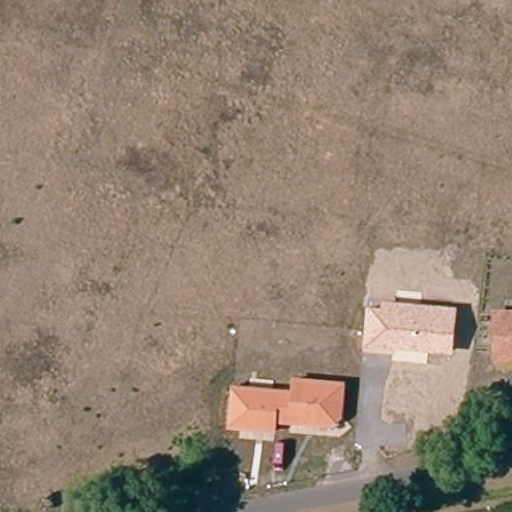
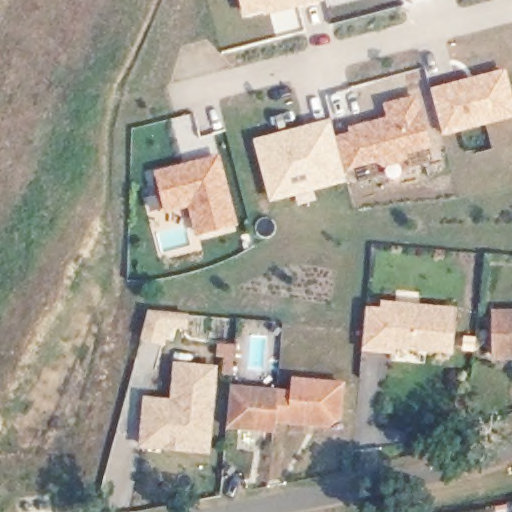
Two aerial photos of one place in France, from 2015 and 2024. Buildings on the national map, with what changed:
new [(264,11),(245,16),(242,0),(325,0),(325,1),(265,16),(264,11)]
new [(443,132),(432,91),(505,71),(512,98),(512,115),(443,132)]
new [(271,202),(254,140),(331,120),(335,138),(351,134),(349,127),(387,117),(385,104),(419,96),(432,147),(408,153),(403,162),(385,167),(377,161),(344,170),(345,182),(271,202)]
new [(156,172),(220,155),(238,225),(197,236),(190,207),(166,212),(156,172)]
unchanged [(395,350),(395,355),(363,352),(366,308),(381,309),(381,302),(457,308),(454,355),(395,350)]
new [(158,309),(176,311),(174,322),(157,321),(155,340),(133,337),(142,307),(158,309)]
unchanged [(492,359),(491,311),(512,310),(512,359),(492,359)]
new [(140,447),(144,397),(171,399),(175,362),(219,366),(211,455),(140,447)]
unchanged [(227,427),(229,386),(291,391),(292,378),(345,383),(342,420),(331,429),(276,424),(277,433),(227,427)]

